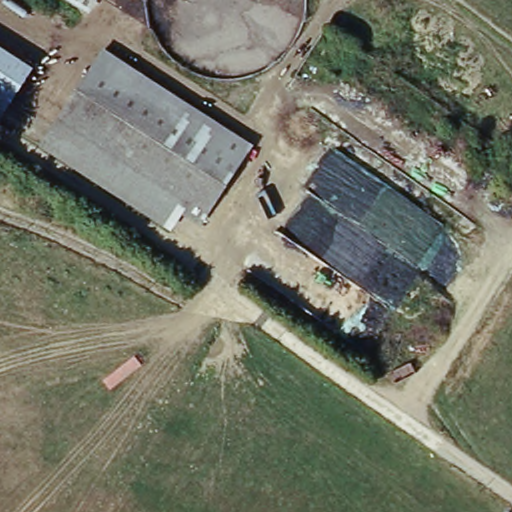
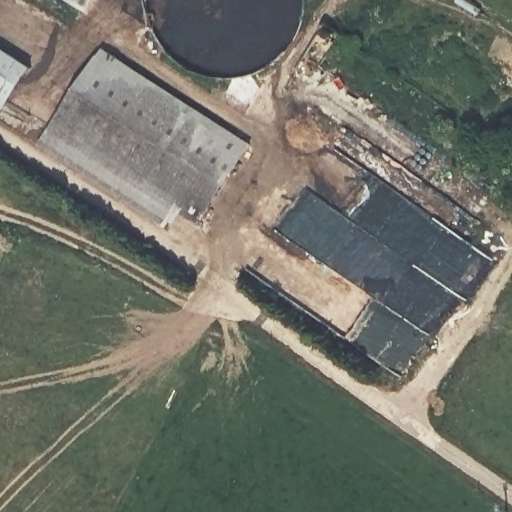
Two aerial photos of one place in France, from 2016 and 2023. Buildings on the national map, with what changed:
unchanged [(69,0),(94,0),(87,11),(69,0)]
unchanged [(5,104),(0,111),(0,50),(28,68),(5,104)]
unchanged [(102,54),(215,120),(159,197),(146,213),(37,149),(102,54)]
unchanged [(215,120),(254,144),(200,222),(159,197),(215,120)]

